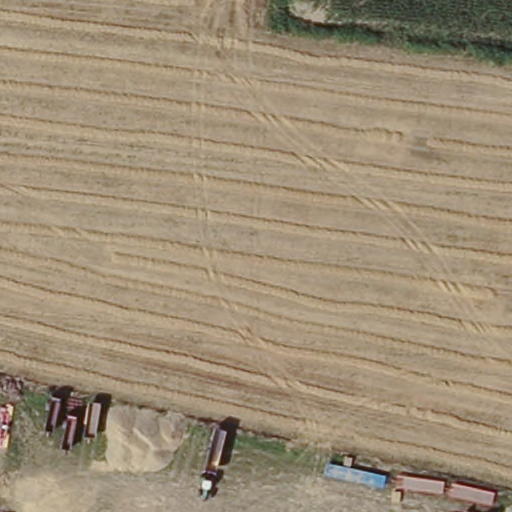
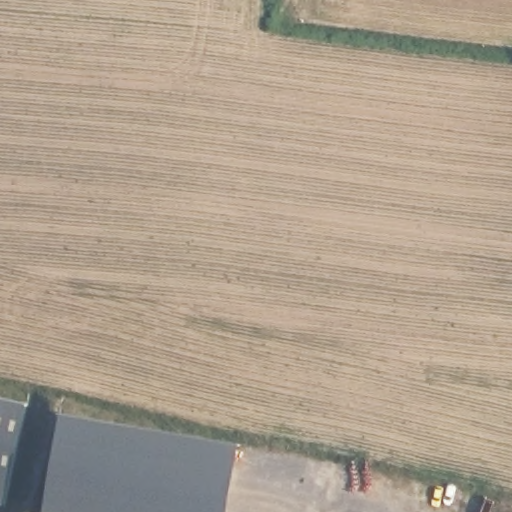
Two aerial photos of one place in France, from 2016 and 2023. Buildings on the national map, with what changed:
demolished [(512,251),(512,294),(492,291),(497,249),(512,251)]
new [(4,504),(0,504),(0,397),(26,402),(4,504)]
new [(62,414),(240,446),(229,512),(45,512),(62,414)]

